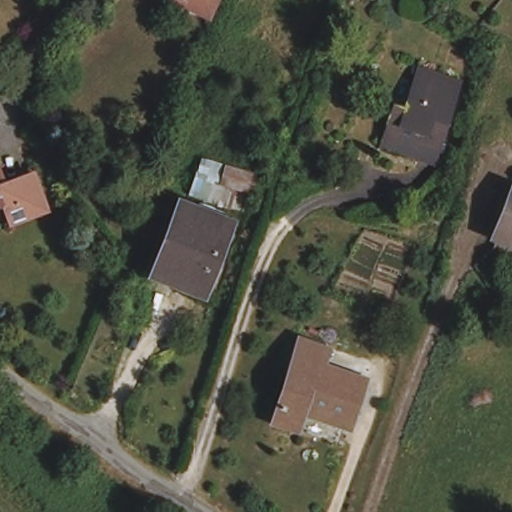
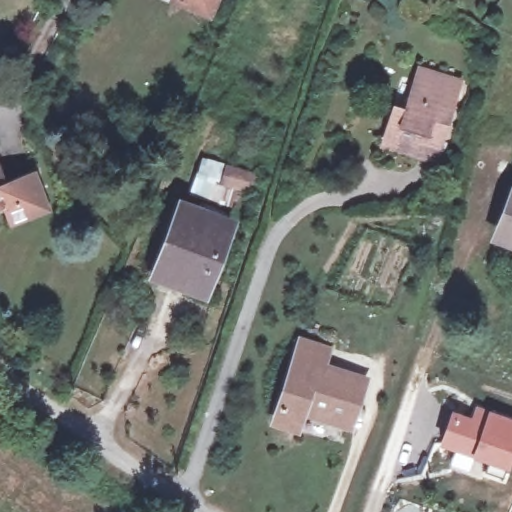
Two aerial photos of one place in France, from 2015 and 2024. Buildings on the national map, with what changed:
unchanged [(215,0),(210,13),(177,0),(215,0)]
unchanged [(435,161),(383,141),(397,104),(408,107),(425,69),(465,83),(435,161)]
unchanged [(2,220),(0,213),(0,171),(2,178),(30,169),(43,207),(2,220)]
unchanged [(203,288),(154,265),(182,202),(232,224),(203,288)]
unchanged [(512,254),(502,250),(512,225),(512,254)]
unchanged [(315,352),(308,369),(352,385),(337,429),(299,417),(293,434),(270,425),(296,346),(315,352)]
new [(475,405),(489,411),(512,419),(512,460),(508,471),(472,458),(438,445),(451,411),(471,418),(475,405)]

